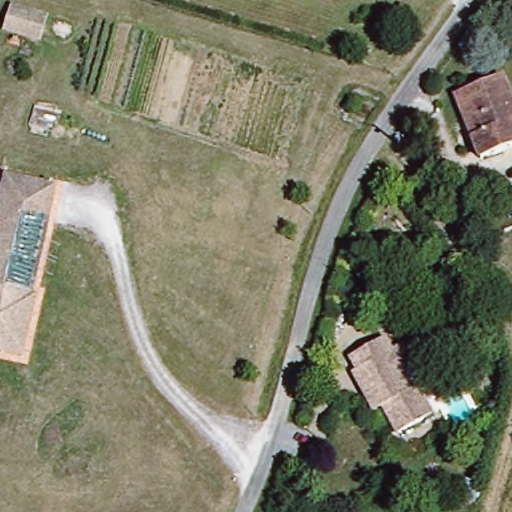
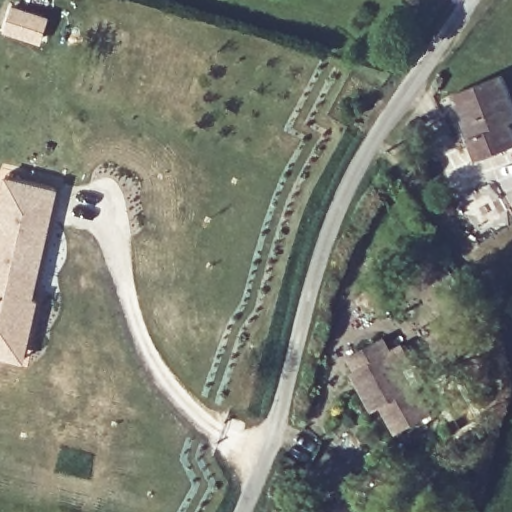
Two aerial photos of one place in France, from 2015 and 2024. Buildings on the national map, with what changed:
unchanged [(0,36),(0,14),(32,22),(26,45),(0,36)]
unchanged [(510,120),(512,124),(512,146),(480,157),(470,132),(479,128),(465,87),(503,74),(512,97),(512,119),(510,120)]
unchanged [(58,192),(31,302),(36,303),(28,335),(0,327),(0,206),(6,180),(58,192)]
unchanged [(20,363),(0,357),(0,327),(28,335),(20,363)]
unchanged [(417,385),(434,414),(400,433),(379,397),(367,403),(354,381),(359,378),(347,357),(378,339),(389,358),(401,351),(411,368),(400,375),(408,391),(417,385)]

